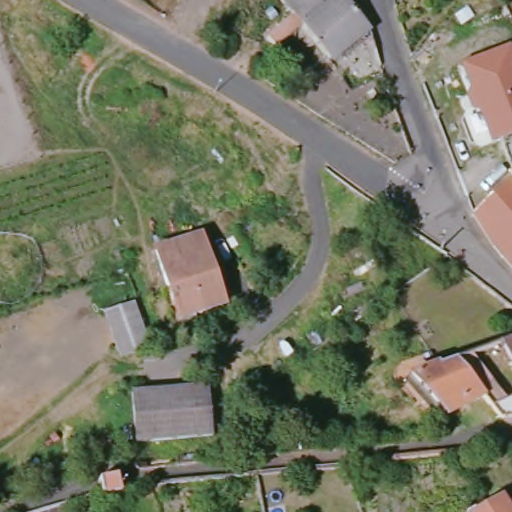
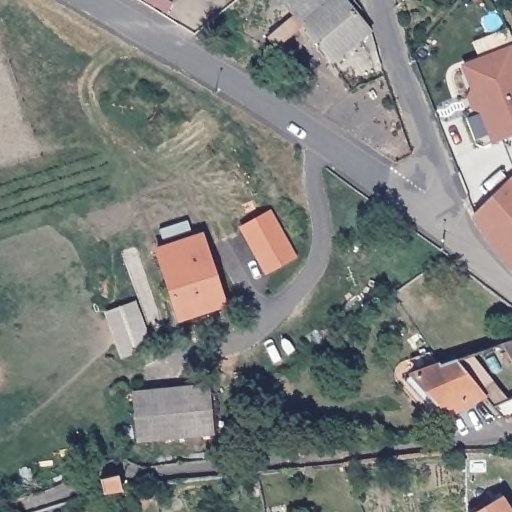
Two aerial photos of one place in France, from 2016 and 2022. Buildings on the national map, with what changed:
unchanged [(342,0),(364,27),(366,35),(371,51),(366,56),(353,40),(326,62),(298,27),(270,49),(262,40),(289,17),(276,0),(342,0)]
unchanged [(490,143),(486,134),(474,139),(467,121),(478,117),(469,114),(463,99),(469,90),(460,66),(509,47),(512,55),(512,170),(499,141),(490,143)]
unchanged [(468,219),(512,176),(512,277),(485,248),(468,219)]
new [(265,273),(239,227),(271,210),(296,256),(265,273)]
unchanged [(167,302),(150,250),(197,235),(220,305),(190,314),(173,319),(167,302)]
unchanged [(136,303),(153,351),(121,363),(103,316),(136,303)]
unchanged [(512,366),(498,343),(512,338),(512,366)]
unchanged [(481,395),(441,416),(404,376),(437,364),(452,359),(481,395)]
unchanged [(207,385),(213,436),(136,443),(132,392),(207,385)]
unchanged [(101,483),(119,480),(123,496),(103,498),(103,495),(101,483)]
unchanged [(509,512),(478,512),(491,505),(501,499),(509,512)]

